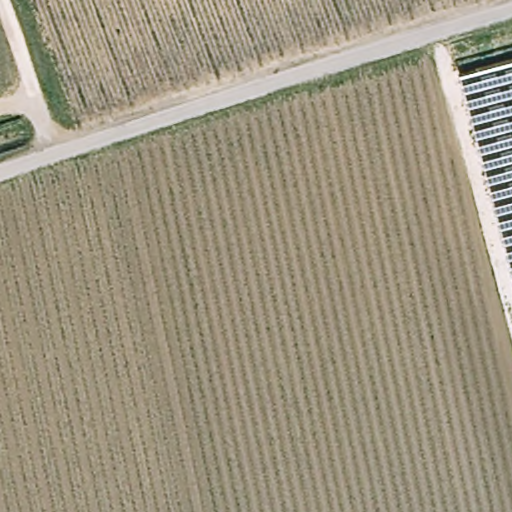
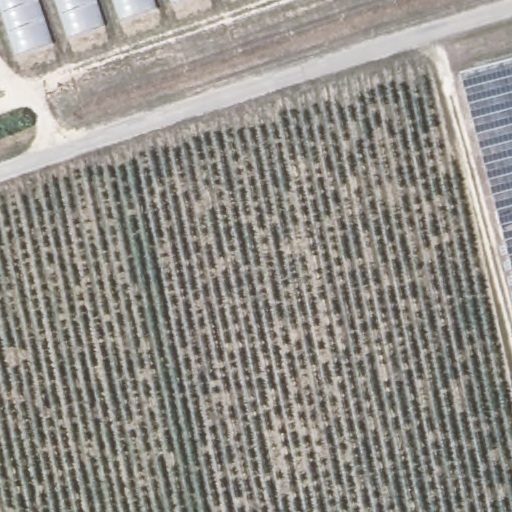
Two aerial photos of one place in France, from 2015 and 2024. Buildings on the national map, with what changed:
new [(0,10),(0,0),(182,0),(15,56),(0,10)]
unchanged [(460,76),(512,62),(512,275),(460,76)]

